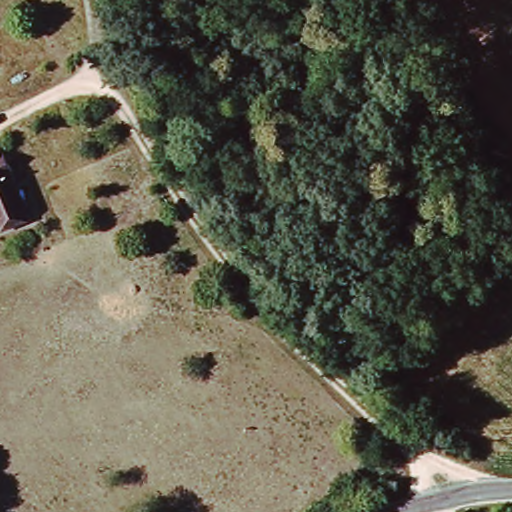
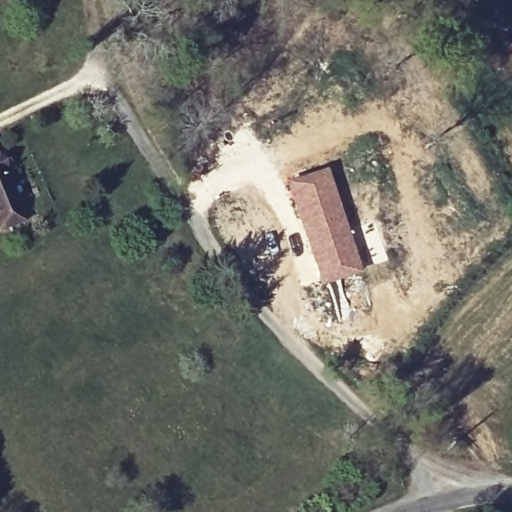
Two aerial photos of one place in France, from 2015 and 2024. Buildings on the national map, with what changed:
unchanged [(1,157),(19,210),(25,226),(0,235),(0,158),(1,157)]
new [(326,168),(362,274),(320,287),(284,180),(326,168)]

